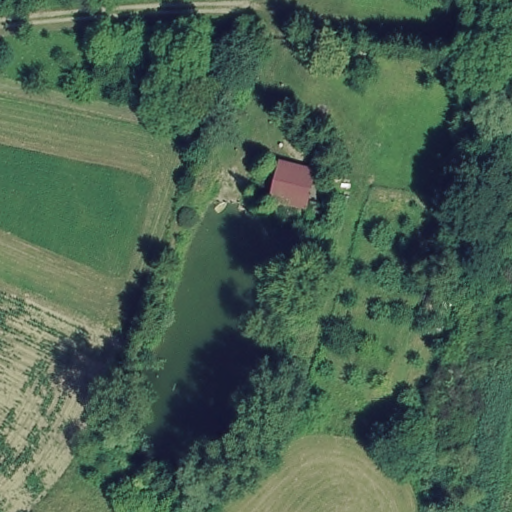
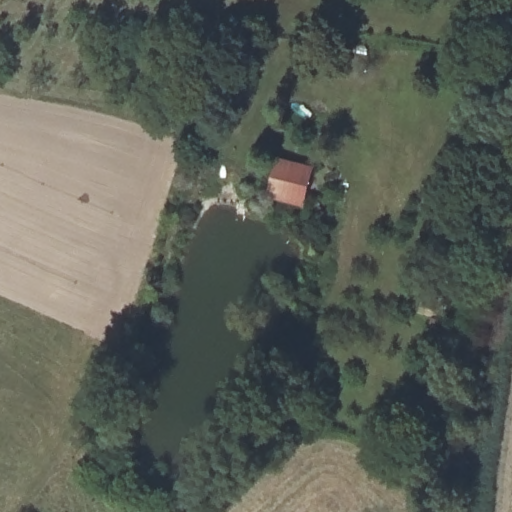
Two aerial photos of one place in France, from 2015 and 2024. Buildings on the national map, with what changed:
unchanged [(321,167),(313,208),(271,200),(279,158),(321,167)]

